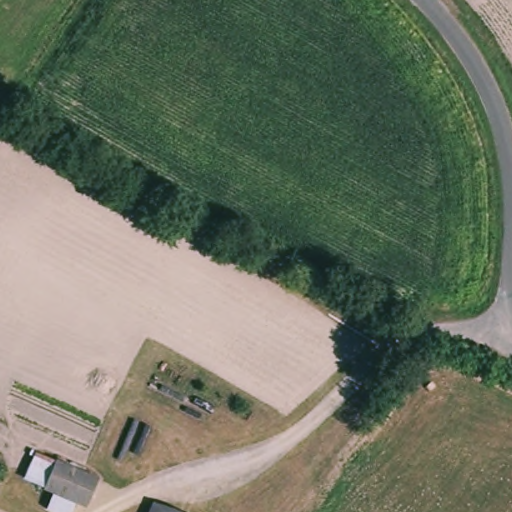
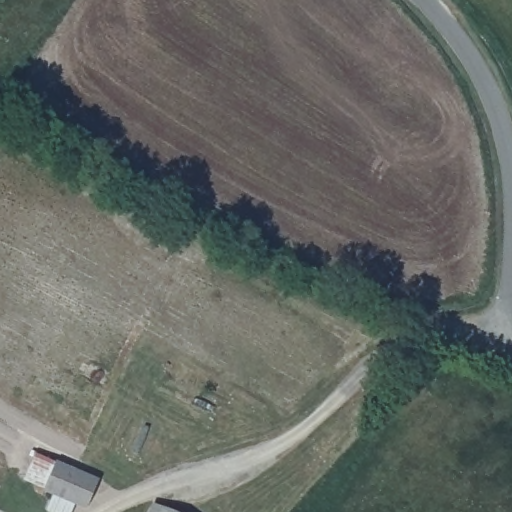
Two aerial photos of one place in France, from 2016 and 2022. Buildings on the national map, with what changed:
unchanged [(84,510),(52,495),(66,467),(97,481),(84,510)]
unchanged [(167,512),(152,512),(154,506),(167,512)]

